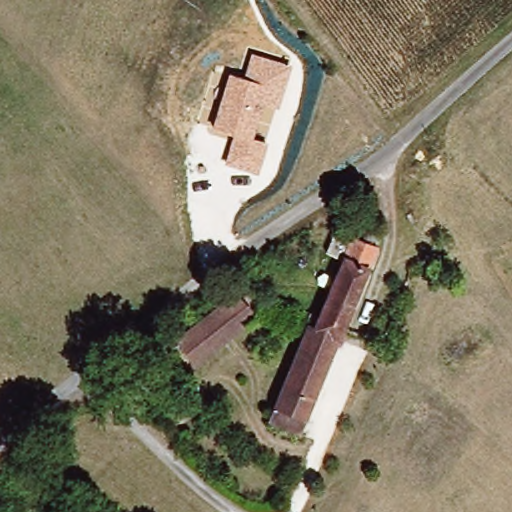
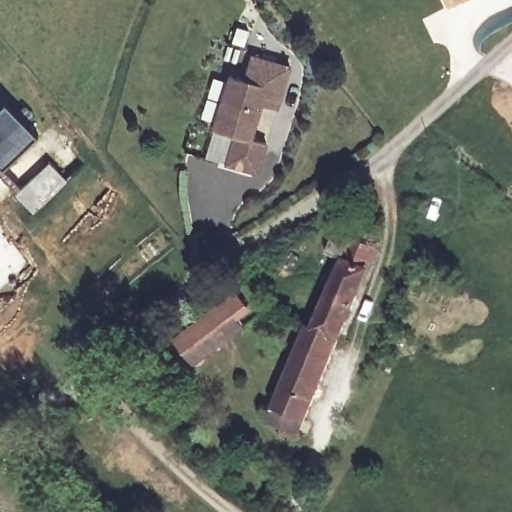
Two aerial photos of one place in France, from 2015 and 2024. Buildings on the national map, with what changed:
new [(448,7),(444,0),(463,0),(448,7)]
unchanged [(243,78),(252,53),(294,67),(279,111),(264,107),(254,139),(269,145),(258,177),(223,166),(232,138),(211,130),(229,74),(243,78)]
new [(4,102),(38,137),(2,170),(0,168),(0,106),(4,102)]
new [(49,163),(68,183),(34,216),(15,196),(49,163)]
unchanged [(339,221),(383,244),(366,269),(354,263),(341,279),(334,277),(337,264),(326,256),(339,221)]
unchanged [(306,325),(313,327),(334,277),(341,279),(354,263),(366,269),(334,348),(303,335),(306,325)]
unchanged [(183,342),(241,300),(250,311),(216,339),(221,346),(201,362),(183,342)]
unchanged [(271,416),(303,335),(334,348),(303,428),(271,416)]

